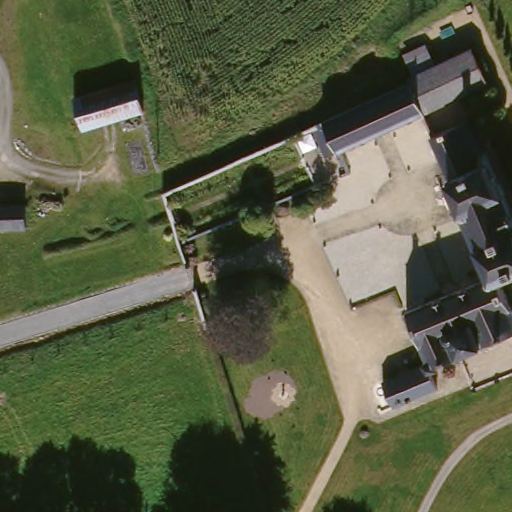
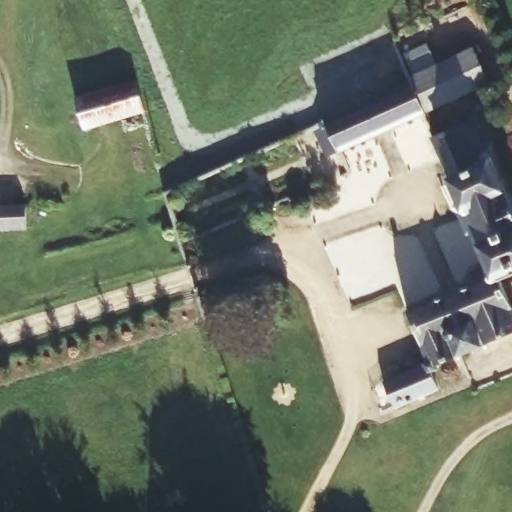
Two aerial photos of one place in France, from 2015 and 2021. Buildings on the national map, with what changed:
unchanged [(464,55),(479,88),(436,107),(418,115),(404,88),(403,81),(464,55)]
unchanged [(132,85),(140,102),(142,116),(81,133),(79,127),(73,103),(132,85)]
unchanged [(321,124),(397,91),(404,88),(418,115),(419,118),(411,122),(327,160),(314,128),(321,124)]
unchanged [(429,137),(454,126),(471,164),(488,158),(512,212),(512,270),(495,276),(448,175),(429,137)]
unchanged [(19,208),(21,235),(0,236),(0,209),(19,208)]
unchanged [(425,364),(403,315),(495,276),(512,313),(512,337),(471,354),(438,367),(441,376),(433,380),(436,390),(422,397),(391,407),(381,381),(425,364)]

